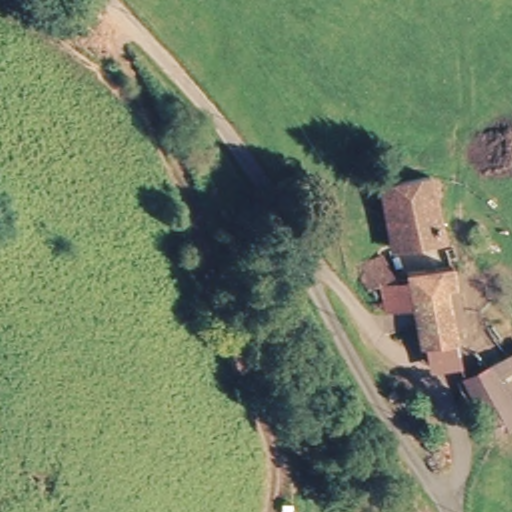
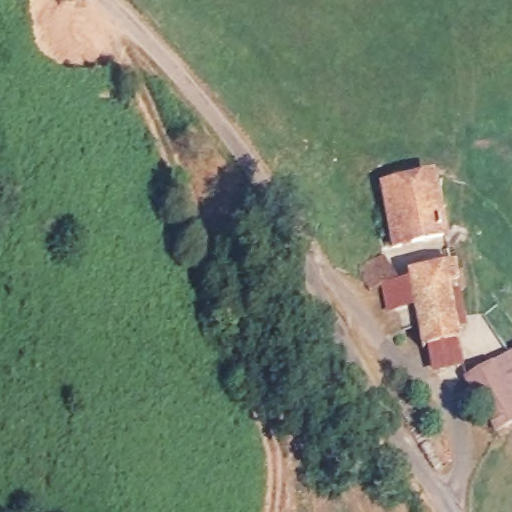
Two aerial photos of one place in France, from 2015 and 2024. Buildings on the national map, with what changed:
unchanged [(447,234),(398,248),(382,185),(432,174),(447,234)]
unchanged [(395,287),(370,294),(362,269),(388,261),(395,287)]
unchanged [(427,351),(411,279),(456,269),(459,277),(465,276),(466,284),(463,285),(472,327),(458,329),(462,344),(427,351)]
unchanged [(512,354),(512,427),(495,437),(464,386),(512,354)]

